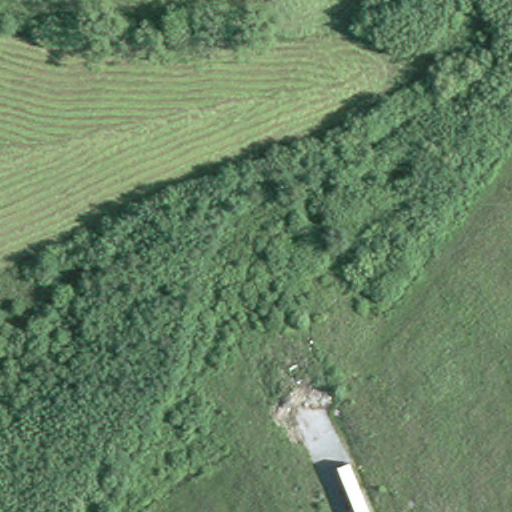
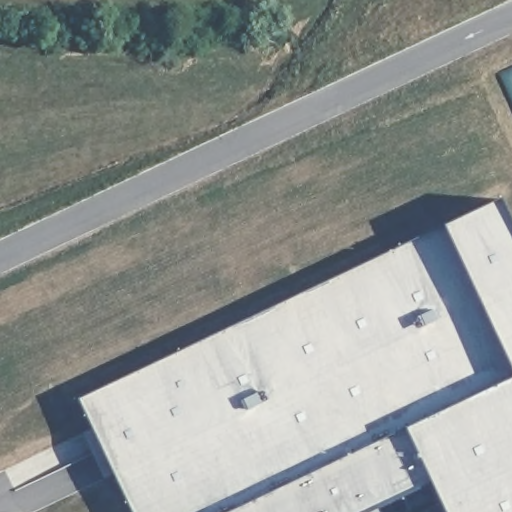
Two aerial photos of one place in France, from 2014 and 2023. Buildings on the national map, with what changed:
new [(110,470),(106,471),(97,476),(75,430),(84,425),(88,423),(76,399),(442,227),(443,227),(500,199),(512,226),(512,512),(443,512),(428,482),(375,509),(368,512),(131,512),(110,470)]
new [(84,425),(106,471),(97,476),(75,430),(84,425)]
new [(372,503),(375,509),(368,512),(354,512),(372,503)]

